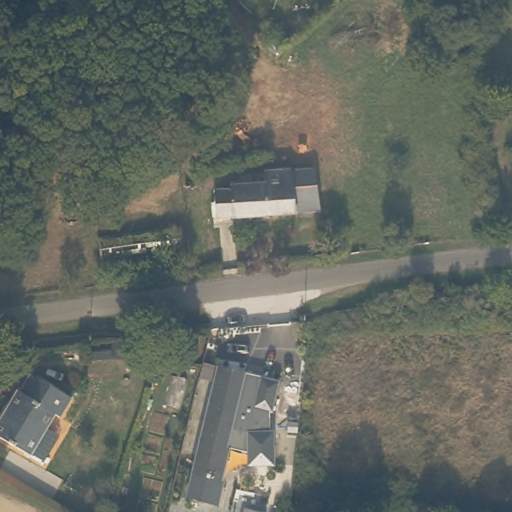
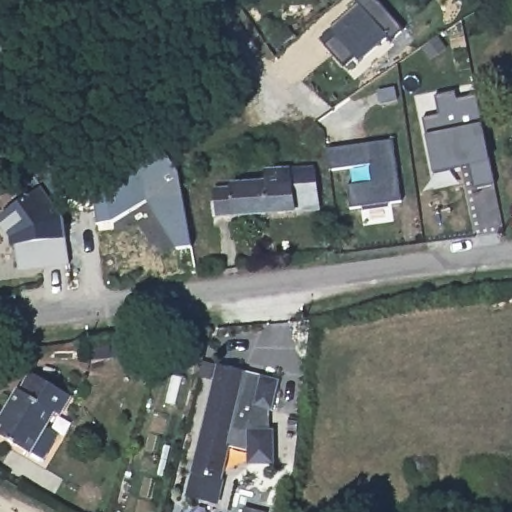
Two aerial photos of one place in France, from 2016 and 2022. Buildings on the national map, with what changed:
new [(336,35),(331,29),(359,4),(355,0),(378,0),(404,29),(391,41),(388,37),(360,62),(355,56),(343,66),(325,45),(336,35)]
new [(475,188),(471,166),(433,173),(426,135),(423,117),(440,115),(437,95),(455,92),(456,98),(476,94),(482,124),(490,162),(495,184),(475,188)]
new [(31,157),(21,147),(10,135),(30,115),(41,127),(52,137),(31,157)]
unchanged [(374,167),(330,172),(327,149),(395,140),(405,202),(350,210),(347,186),(375,182),(374,167)]
new [(114,223),(97,224),(93,184),(170,163),(179,170),(193,248),(176,249),(149,202),(114,223)]
unchanged [(317,209),(216,219),(216,195),(263,191),(263,173),(313,168),(317,209)]
new [(0,224),(0,219),(42,188),(60,216),(65,238),(70,266),(20,271),(16,247),(12,247),(11,238),(0,224)]
unchanged [(292,371),(284,401),(281,400),(280,422),(282,422),(280,453),(255,451),(256,440),(237,437),(224,489),(195,482),(209,430),(206,429),(225,356),(292,371)]
unchanged [(61,416),(50,408),(40,422),(53,430),(36,455),(0,430),(0,413),(30,370),(72,399),(61,416)]

